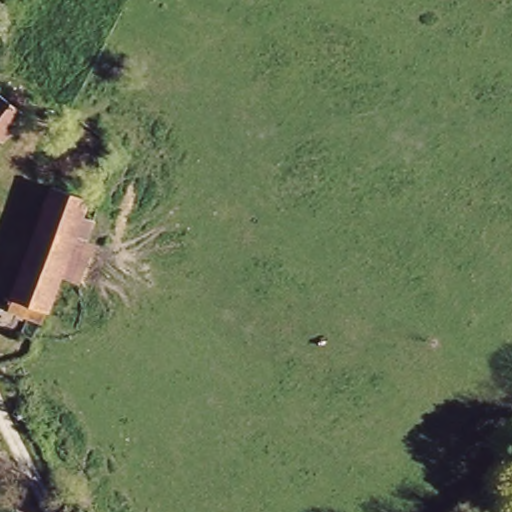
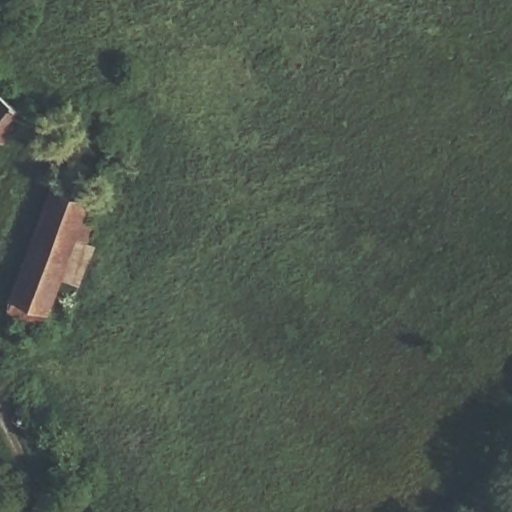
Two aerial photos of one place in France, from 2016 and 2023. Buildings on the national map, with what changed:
unchanged [(0,144),(0,98),(22,114),(0,144)]
unchanged [(2,305),(46,185),(81,198),(75,214),(85,217),(79,236),(68,233),(35,319),(2,305)]

